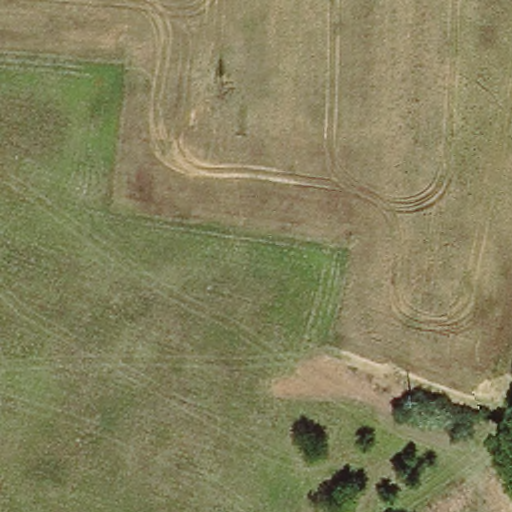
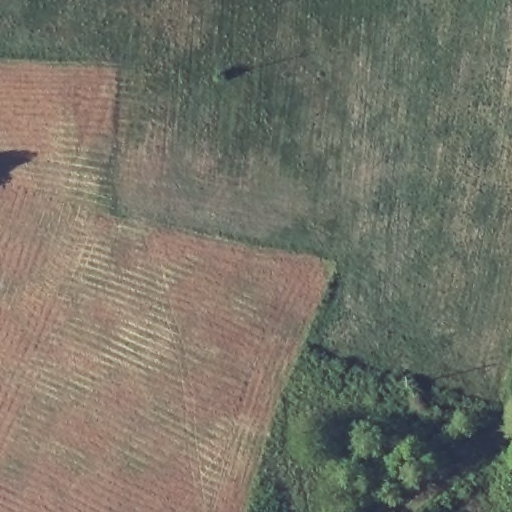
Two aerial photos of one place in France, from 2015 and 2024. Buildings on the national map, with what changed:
[]

